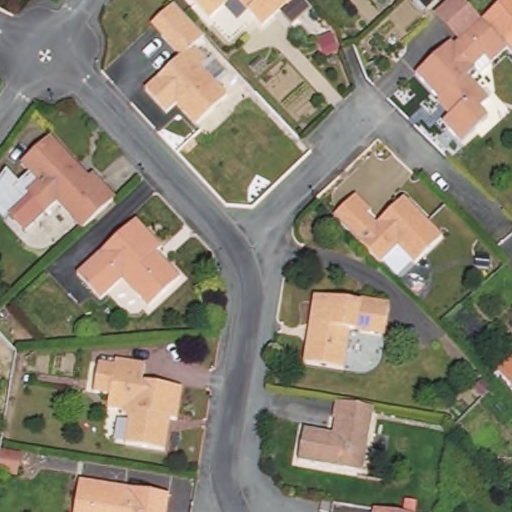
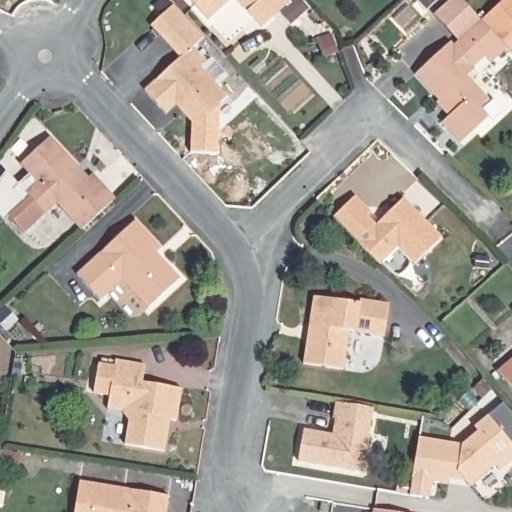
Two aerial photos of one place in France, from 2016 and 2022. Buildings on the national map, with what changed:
unchanged [(190,0),(227,0),(206,17),(190,0)]
unchanged [(237,0),(296,0),(264,29),(237,0)]
unchanged [(512,0),(512,26),(497,40),(479,18),(497,0),(512,0)]
unchanged [(205,64),(198,70),(224,100),(195,127),(176,105),(165,115),(144,91),(179,59),(160,37),(153,27),(176,6),(185,16),(186,17),(204,37),(192,47),(205,64)]
unchanged [(497,40),(504,48),(505,49),(469,84),(484,102),(474,112),(484,122),(457,146),(439,127),(449,117),(437,103),(436,104),(409,75),(447,42),(449,45),(457,37),(479,18),(497,40)]
unchanged [(505,49),(504,48),(497,40),(512,26),(512,56),(505,49)]
unchanged [(83,232),(57,205),(45,216),(25,196),(36,185),(20,167),(50,140),(89,181),(93,177),(114,201),(83,232)]
new [(25,196),(43,214),(21,232),(9,217),(4,221),(0,216),(0,179),(6,171),(19,183),(28,175),(36,185),(25,196)]
unchanged [(354,198),(369,214),(366,218),(375,227),(403,201),(441,241),(414,267),(396,250),(378,267),(332,219),(354,198)]
unchanged [(135,224),(159,251),(155,256),(179,282),(149,311),(124,284),(104,304),(79,277),(135,224)]
unchanged [(314,300),(362,307),(363,302),(388,307),(384,336),(350,331),(343,370),(303,363),(314,300)]
unchanged [(496,376),(512,362),(512,397),(496,376)]
unchanged [(111,399),(94,397),(99,367),(115,370),(116,363),(144,368),(141,386),(180,392),(175,422),(169,422),(163,454),(127,448),(130,423),(124,416),(109,412),(111,399)]
new [(463,444),(478,432),(474,427),(504,402),(512,412),(512,456),(506,462),(501,457),(469,484),(460,472),(449,481),(434,477),(430,499),(409,495),(418,437),(463,444)]
unchanged [(374,411),(366,476),(303,467),(307,437),(339,440),(342,423),(332,422),(334,406),(374,411)]
unchanged [(79,486),(167,500),(165,512),(75,512),(79,486)]

